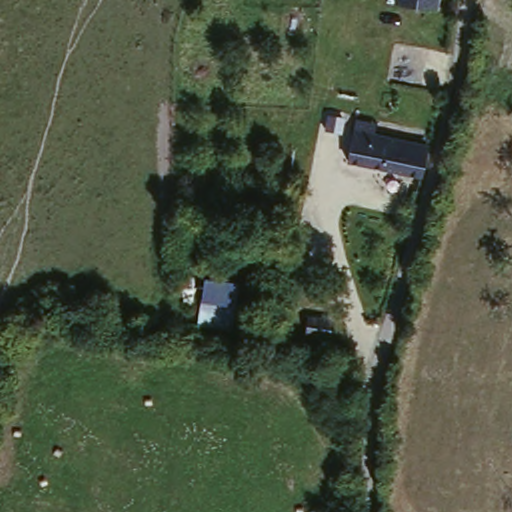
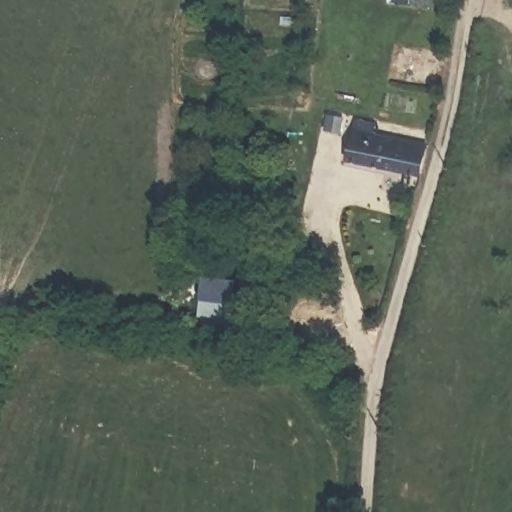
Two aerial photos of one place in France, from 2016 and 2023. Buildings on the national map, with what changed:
unchanged [(394,3),(394,0),(433,0),(433,7),(394,3)]
unchanged [(349,156),(354,129),(426,148),(420,174),(349,156)]
unchanged [(200,322),(200,299),(234,303),(233,325),(200,322)]
unchanged [(334,321),(332,341),(309,337),(312,318),(334,321)]

